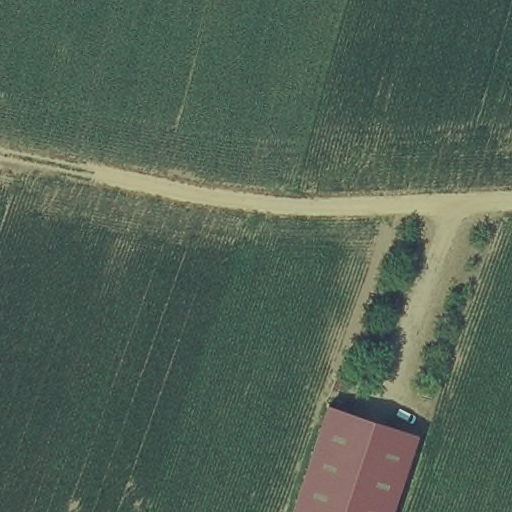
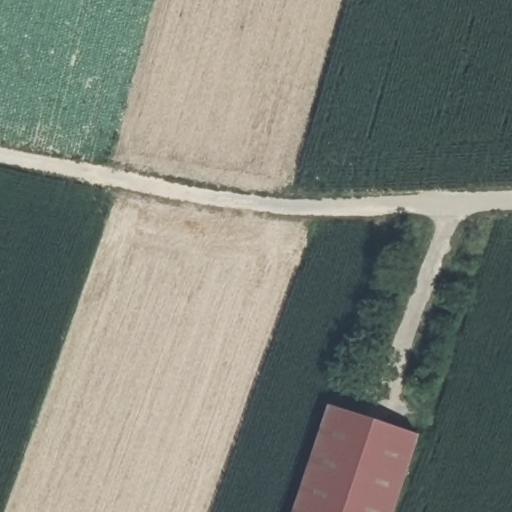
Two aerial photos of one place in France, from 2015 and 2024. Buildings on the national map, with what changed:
unchanged [(413,437),(388,512),(289,512),(324,406),(413,437)]

